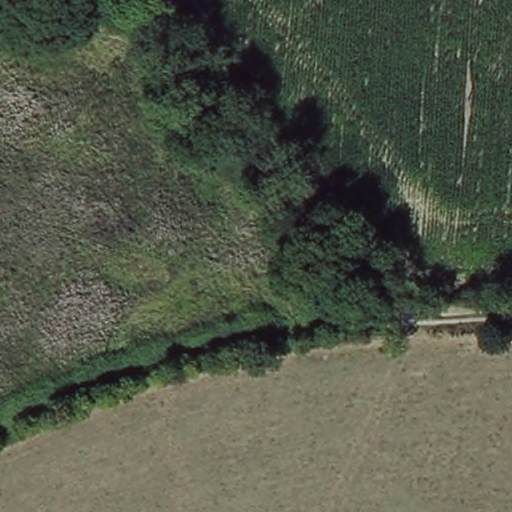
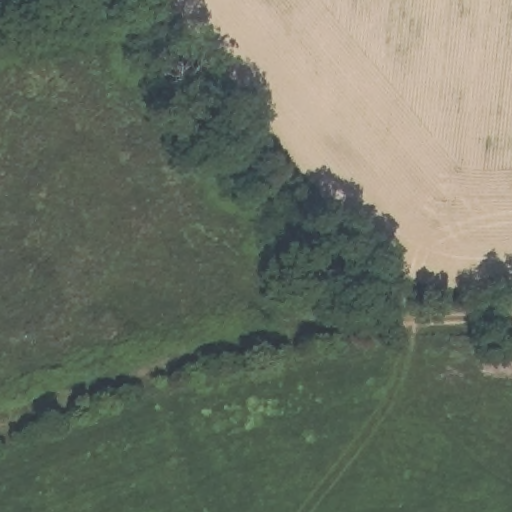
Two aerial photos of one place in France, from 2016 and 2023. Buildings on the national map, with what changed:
[]

